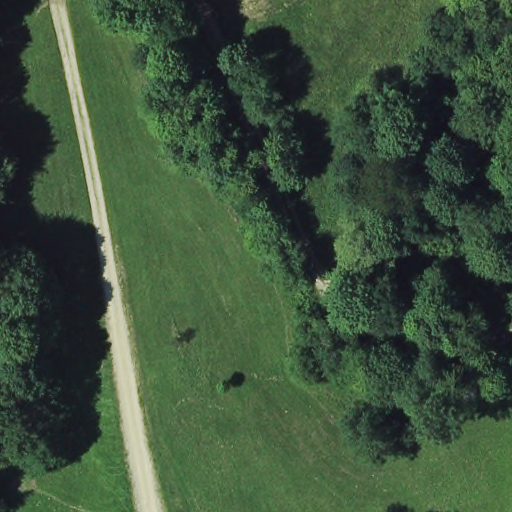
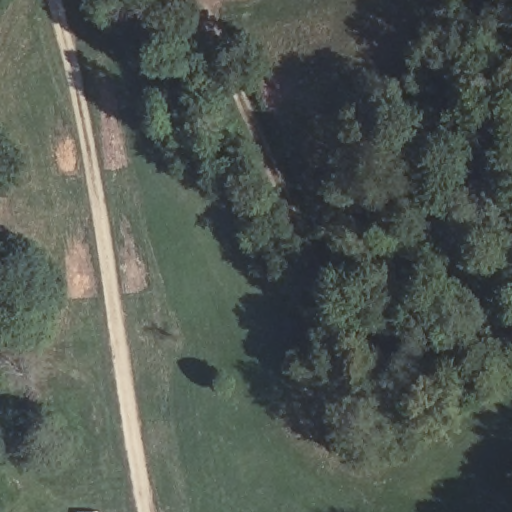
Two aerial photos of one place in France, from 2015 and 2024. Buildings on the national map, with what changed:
[]

